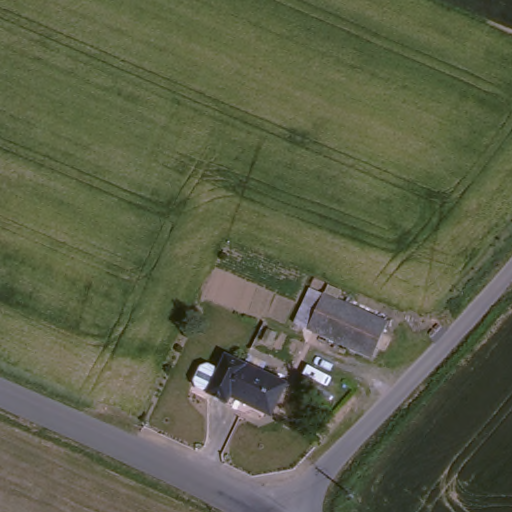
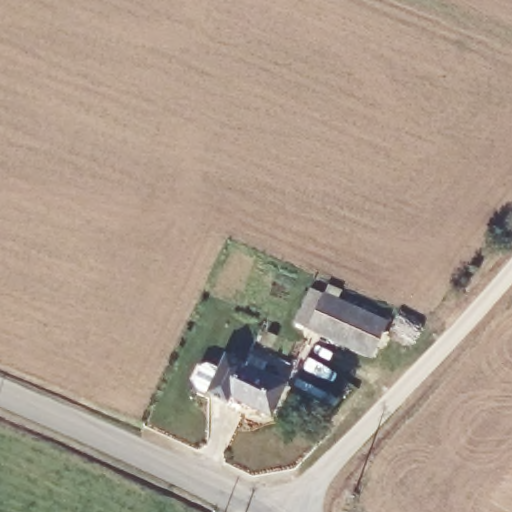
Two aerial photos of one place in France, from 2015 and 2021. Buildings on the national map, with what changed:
unchanged [(332,294),(365,309),(398,323),(379,361),(315,333),(332,294)]
unchanged [(230,358),(247,366),(250,358),(269,367),(264,376),(288,386),(272,419),(233,398),(230,405),(212,396),(230,358)]

